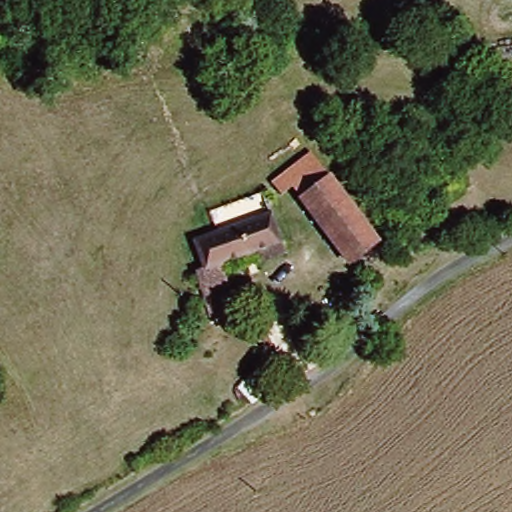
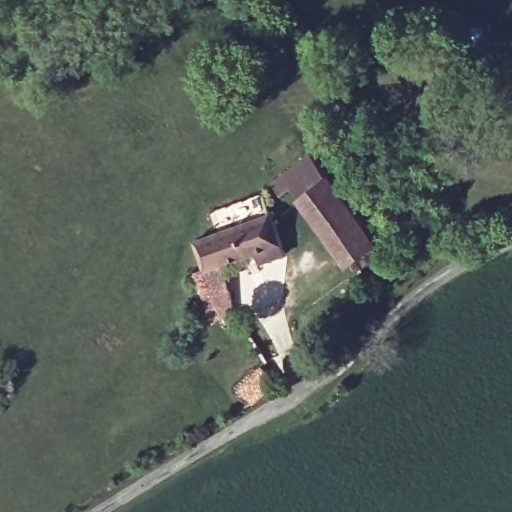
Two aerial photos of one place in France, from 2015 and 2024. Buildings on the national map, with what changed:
unchanged [(465,77),(451,81),(446,66),(462,63),(465,77)]
unchanged [(278,183),(310,160),(367,236),(338,257),(285,192),(278,183)]
unchanged [(220,277),(225,288),(197,301),(188,273),(198,268),(189,241),(265,215),(280,256),(220,277)]

